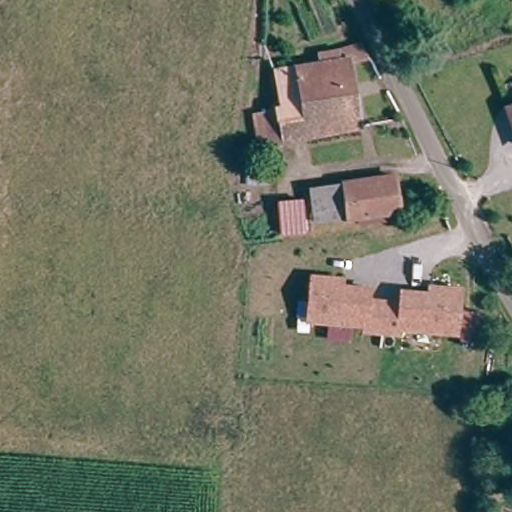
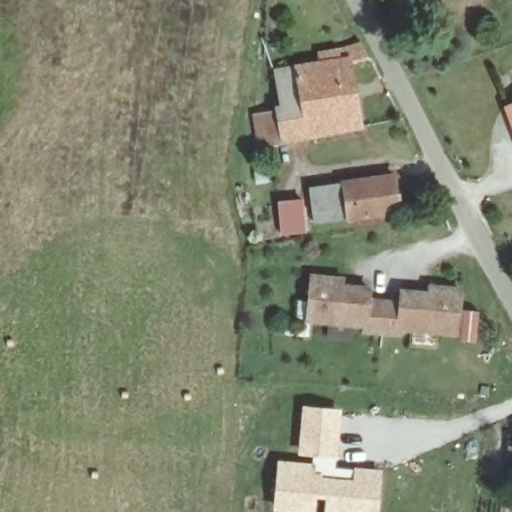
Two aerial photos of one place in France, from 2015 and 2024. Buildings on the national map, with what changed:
unchanged [(352,129),(267,145),(267,147),(257,148),(251,115),(283,109),(276,71),(325,62),(323,53),(358,46),(368,58),(348,62),(348,86),(344,87),(352,129)]
unchanged [(512,104),(512,135),(504,107),(512,104)]
unchanged [(400,219),(361,226),(360,217),(316,224),(310,189),(394,177),(400,219)]
unchanged [(403,332),(402,339),(364,335),(364,327),(308,322),(312,274),(347,278),(347,285),(373,288),(372,299),(401,301),(401,288),(430,290),(431,282),(465,285),(461,335),(403,332)]
new [(301,403),(342,407),(337,457),(313,456),(296,454),(301,403)]
new [(277,458),(313,461),(313,456),(337,457),(336,465),(383,469),(379,512),(322,512),(324,498),(317,497),(315,512),(281,512),(271,511),(277,458)]

